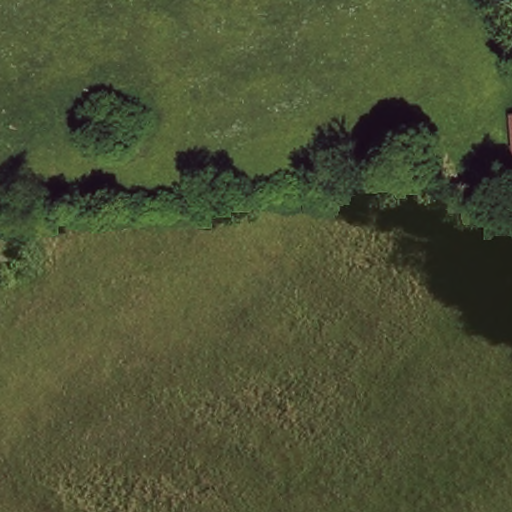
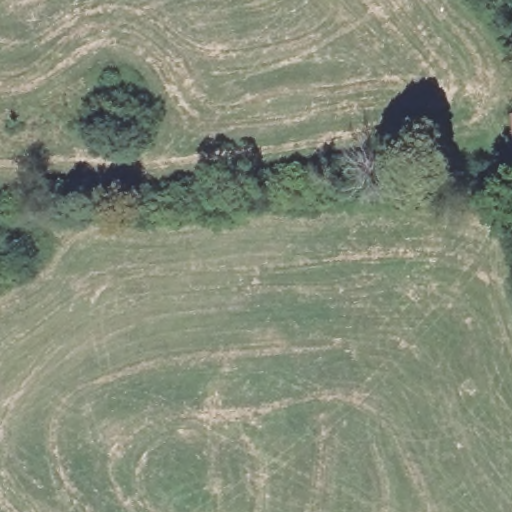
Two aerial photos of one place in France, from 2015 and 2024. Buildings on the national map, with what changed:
unchanged [(512,117),(512,148),(509,117),(512,117)]

